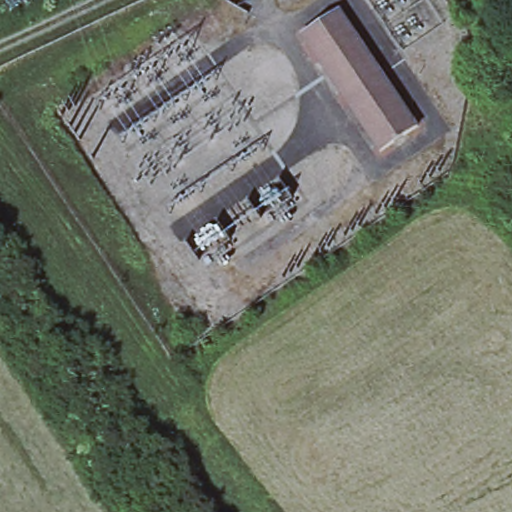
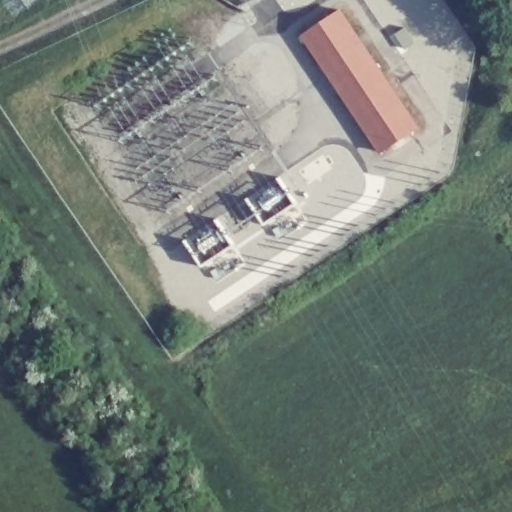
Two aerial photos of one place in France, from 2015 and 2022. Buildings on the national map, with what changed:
unchanged [(302,36),(340,12),(420,129),(383,151),(302,36)]

